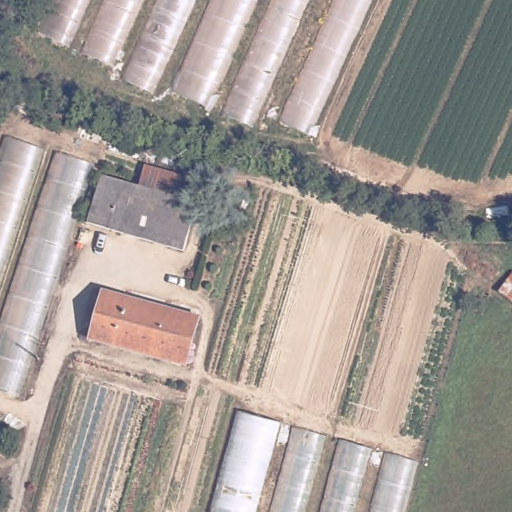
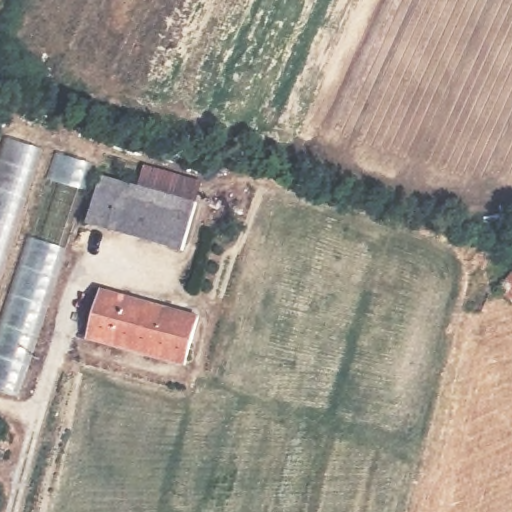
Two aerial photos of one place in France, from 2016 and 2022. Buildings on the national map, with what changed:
demolished [(368,0),(308,138),(262,115),(256,125),(125,78),(36,27),(49,0),(368,0)]
unchanged [(0,163),(13,125),(96,151),(16,404),(0,399),(0,163)]
unchanged [(140,185),(146,163),(204,180),(197,203),(140,185)]
unchanged [(184,246),(92,221),(105,174),(140,185),(197,203),(184,246)]
unchanged [(85,334),(99,288),(196,315),(182,363),(85,334)]
unchanged [(292,425),(417,463),(403,512),(268,512),(292,425)]

